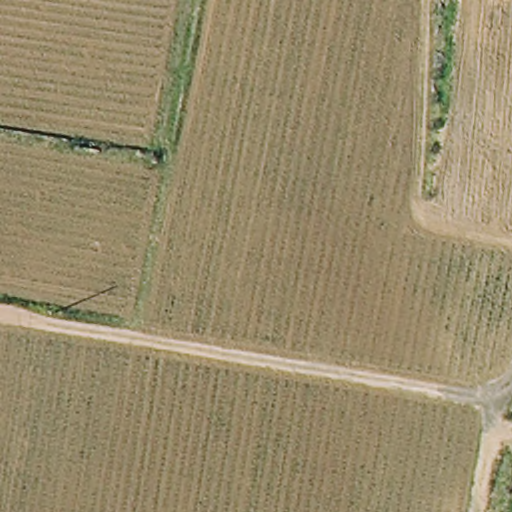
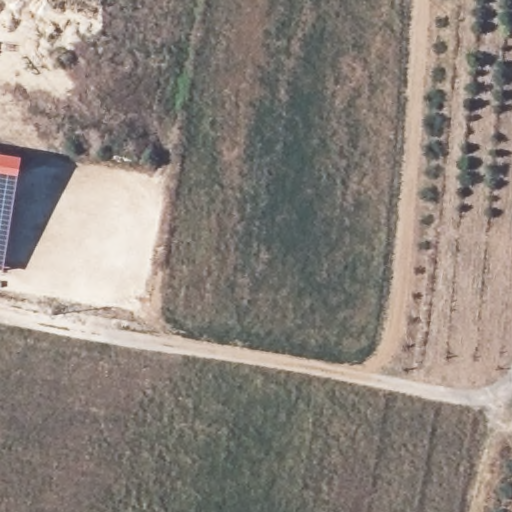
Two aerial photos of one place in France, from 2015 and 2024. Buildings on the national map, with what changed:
new [(3,273),(0,272),(0,159),(22,162),(3,273)]

